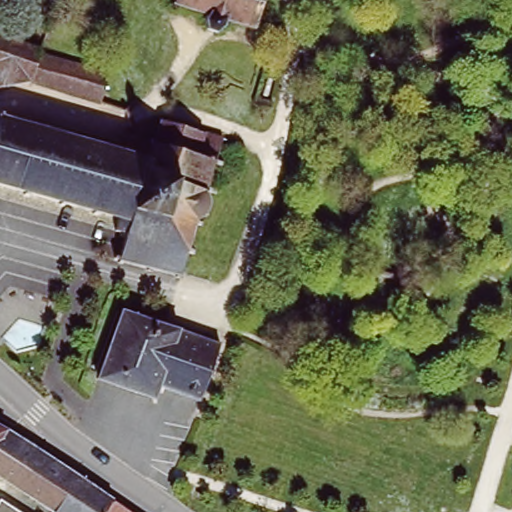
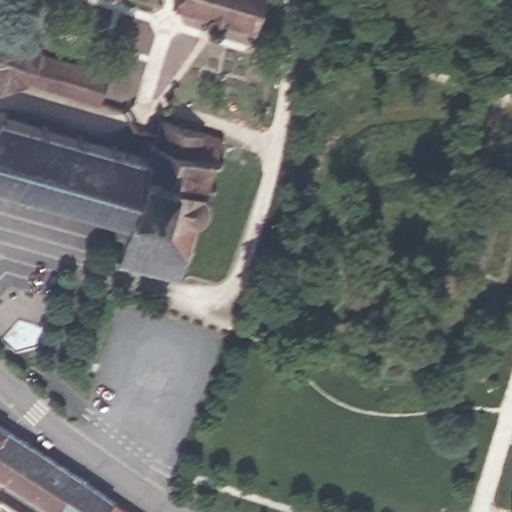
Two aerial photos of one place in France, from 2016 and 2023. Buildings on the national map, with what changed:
unchanged [(207,32),(205,29),(205,27),(205,22),(207,16),(174,4),(175,0),(262,0),(252,31),(225,22),(222,29),(220,32),(217,34),(215,35),(212,35),(210,34),(208,34),(207,32)]
unchanged [(39,51),(30,84),(0,88),(0,33),(41,44),(39,51)]
unchanged [(39,51),(126,79),(115,112),(30,84),(39,51)]
unchanged [(118,220),(100,215),(99,219),(94,217),(95,214),(66,205),(65,209),(60,207),(61,204),(30,195),(29,199),(24,197),(25,194),(0,187),(0,113),(4,115),(3,118),(42,129),(43,126),(47,127),(47,131),(79,140),(80,136),(85,137),(84,141),(112,149),(114,145),(119,147),(117,151),(147,159),(153,139),(158,121),(202,133),(220,138),(212,165),(204,192),(205,195),(205,198),(207,203),(207,207),(205,211),(203,216),(200,220),(195,224),(180,277),(175,275),(154,270),(119,261),(126,236),(115,232),(118,220)]
demolished [(99,381),(120,312),(155,323),(127,391),(99,381)]
demolished [(155,323),(202,338),(174,392),(159,387),(154,400),(127,391),(155,323)]
demolished [(202,338),(218,343),(200,400),(174,392),(202,338)]
unchanged [(0,439),(0,425),(7,429),(0,439)]
unchanged [(52,511),(0,478),(0,439),(7,429),(40,450),(112,498),(103,512),(51,512),(52,511)]
unchanged [(112,498),(131,512),(103,512),(112,498)]
unchanged [(0,505),(12,512),(0,512),(0,505)]

